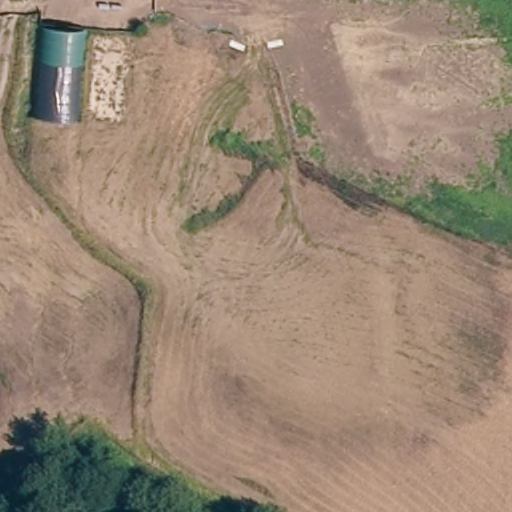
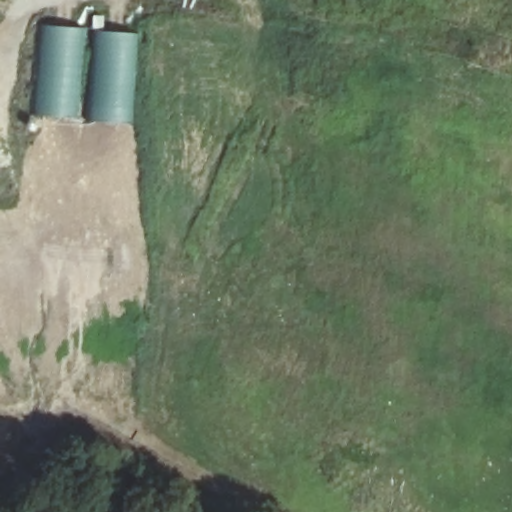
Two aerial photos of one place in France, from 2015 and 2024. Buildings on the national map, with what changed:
unchanged [(76,116),(36,112),(44,21),(82,25),(76,116)]
new [(145,34),(137,125),(88,121),(95,31),(145,34)]

